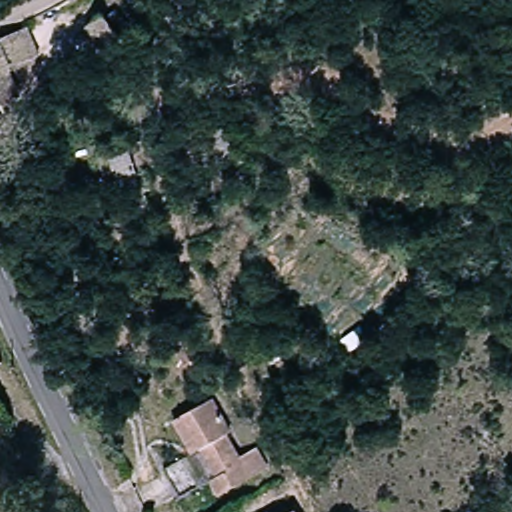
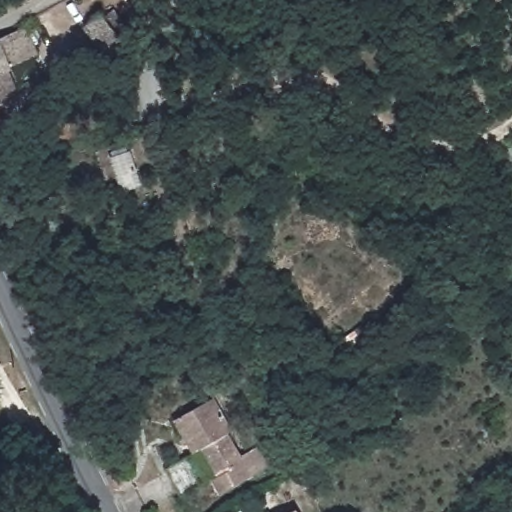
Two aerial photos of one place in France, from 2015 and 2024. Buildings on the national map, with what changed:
unchanged [(105,56),(82,29),(75,20),(90,7),(97,17),(118,44),(105,56)]
unchanged [(0,104),(0,44),(7,41),(7,34),(35,23),(47,53),(6,68),(8,74),(17,97),(0,104)]
unchanged [(207,132),(226,126),(235,163),(215,167),(207,132)]
unchanged [(128,149),(137,183),(116,188),(108,154),(128,149)]
unchanged [(171,420),(207,401),(240,457),(258,448),(268,467),(216,496),(171,420)]

